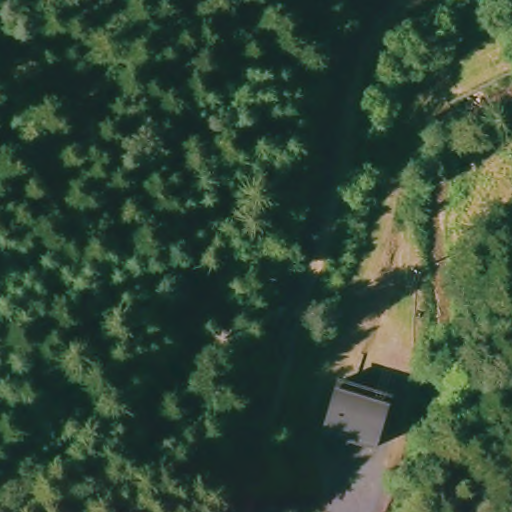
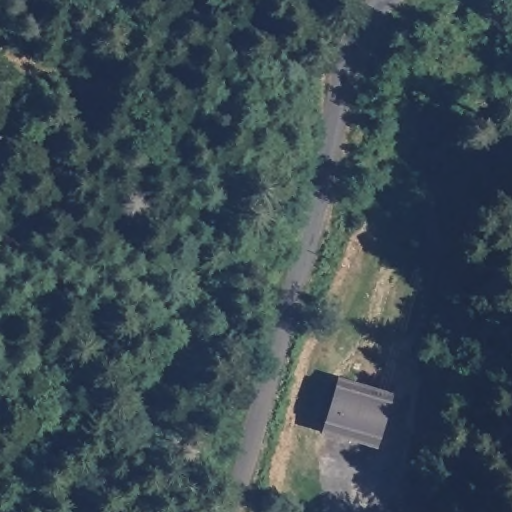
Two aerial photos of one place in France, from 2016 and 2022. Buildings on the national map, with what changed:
unchanged [(340,305),(338,320),(325,318),(329,303),(340,305)]
unchanged [(394,400),(377,452),(325,432),(342,385),(394,400)]

